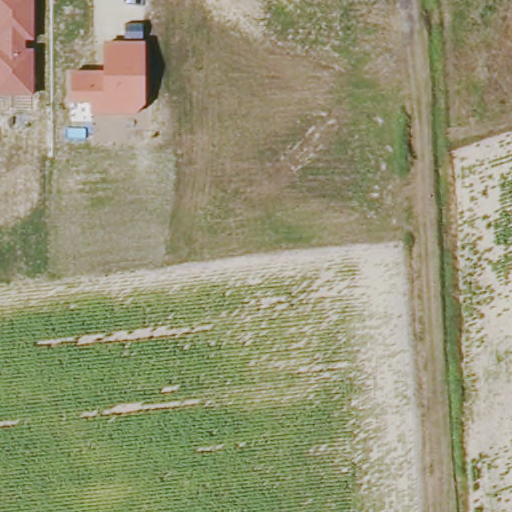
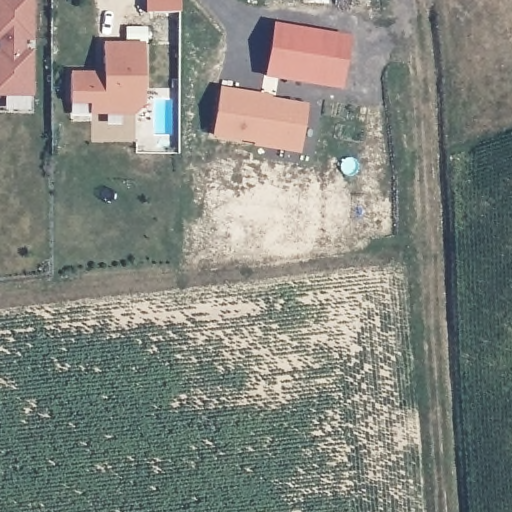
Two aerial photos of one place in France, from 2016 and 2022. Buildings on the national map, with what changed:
unchanged [(25,42),(25,51),(33,51),(33,97),(0,97),(0,0),(33,0),(33,42),(25,42)]
new [(266,77),(274,25),(351,37),(341,89),(266,77)]
unchanged [(145,42),(144,106),(135,116),(90,116),(89,104),(69,104),(70,72),(103,72),(103,42),(145,42)]
new [(255,147),(256,143),(213,137),(221,87),(272,96),(271,100),(308,105),(301,152),(255,147)]

